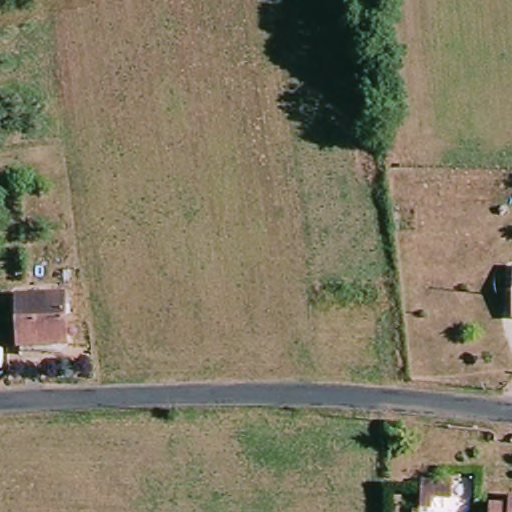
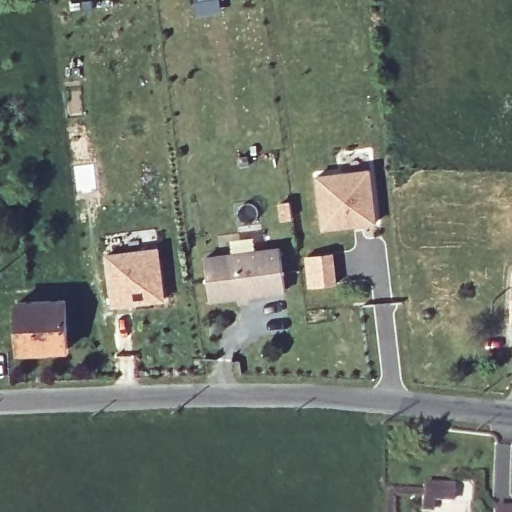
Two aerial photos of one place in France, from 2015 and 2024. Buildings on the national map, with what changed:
new [(369,168),(375,221),(322,227),(317,174),(369,168)]
new [(157,246),(162,297),(111,302),(105,252),(157,246)]
new [(280,246),(286,291),(210,301),(204,257),(280,246)]
new [(333,253),(336,284),(310,287),(307,255),(333,253)]
unchanged [(32,300),(75,299),(76,342),(34,343),(32,300)]
unchanged [(487,489),(487,504),(470,502),(469,512),(461,512),(460,502),(460,487),(487,489)]
unchanged [(512,501),(512,512),(501,512),(502,500),(512,501)]

